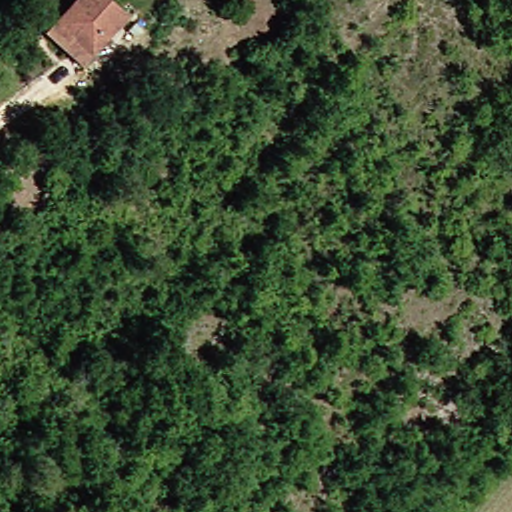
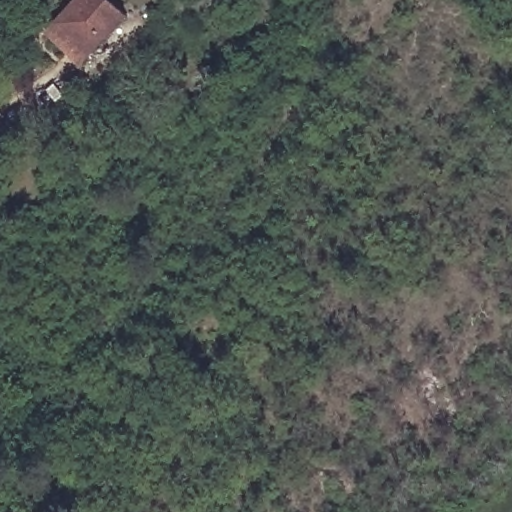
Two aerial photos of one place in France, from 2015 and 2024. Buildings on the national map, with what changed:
unchanged [(62,24),(84,0),(116,0),(133,18),(98,56),(90,66),(53,34),(62,24)]

